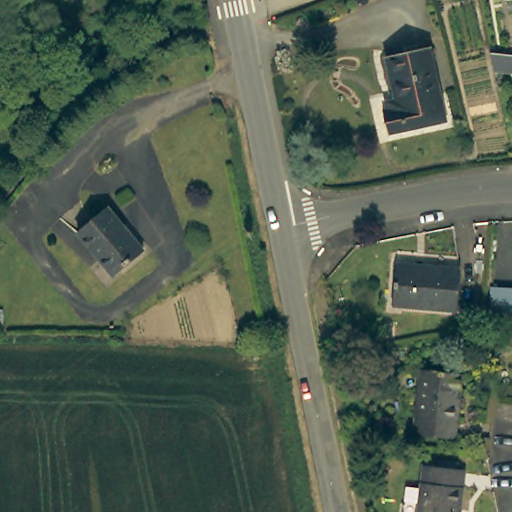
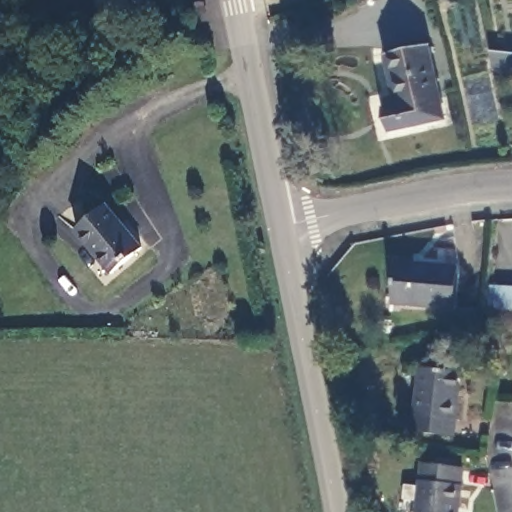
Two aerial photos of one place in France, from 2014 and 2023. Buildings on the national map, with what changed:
unchanged [(211,3),(215,21),(205,21),(202,5),(211,3)]
unchanged [(385,132),(380,111),(395,106),(383,55),(426,45),(443,118),(385,132)]
unchanged [(505,48),(512,48),(512,65),(495,63),(491,47),(505,48)]
unchanged [(74,237),(105,211),(141,250),(110,276),(74,237)]
unchanged [(393,306),(397,263),(462,269),(458,311),(393,306)]
unchanged [(492,291),(512,292),(512,314),(491,313),(492,291)]
unchanged [(412,434),(419,371),(458,376),(451,438),(412,434)]
unchanged [(427,461),(466,465),(460,512),(421,512),(427,461)]

